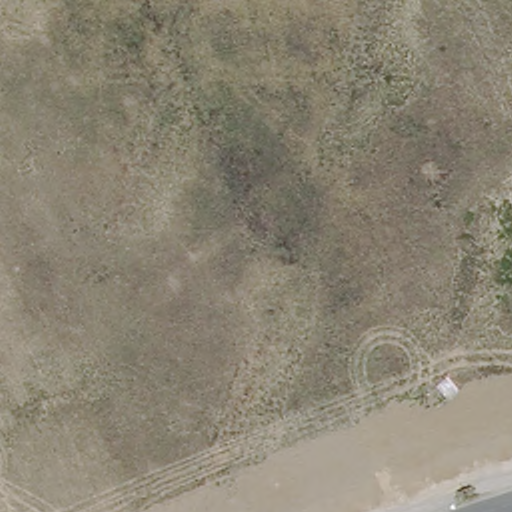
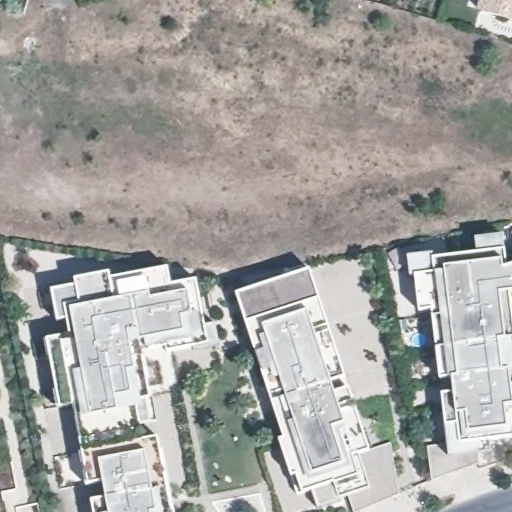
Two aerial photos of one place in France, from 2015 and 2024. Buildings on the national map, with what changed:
new [(512,0),(512,19),(479,10),(482,0),(512,0)]
new [(431,480),(429,447),(448,446),(445,425),(441,395),(454,394),(453,375),(448,376),(441,377),(434,308),(419,309),(417,274),(411,275),(409,256),(433,253),(433,258),(477,252),(476,238),(503,235),(504,250),(507,267),(512,265),(512,298),(509,299),(512,321),(512,436),(489,439),(490,451),(478,453),(479,464),(431,480)]
new [(93,501),(106,497),(103,480),(87,482),(83,451),(74,404),(59,406),(47,339),(70,335),(67,318),(58,320),(52,289),(75,285),(74,278),(108,272),(109,278),(168,268),(171,285),(196,280),(206,326),(215,324),(218,345),(195,349),(194,345),(168,351),(166,343),(146,347),(145,339),(139,340),(150,397),(146,398),(151,422),(139,423),(143,440),(158,437),(172,512),(95,512),(93,501)]
new [(351,512),(346,496),(339,498),(339,501),(319,507),(313,488),(304,491),(297,494),(291,476),(279,439),(284,437),(247,322),(237,295),(309,272),(319,299),(344,377),(331,380),(334,392),(349,388),(368,451),(391,443),(398,495),(351,512)]

